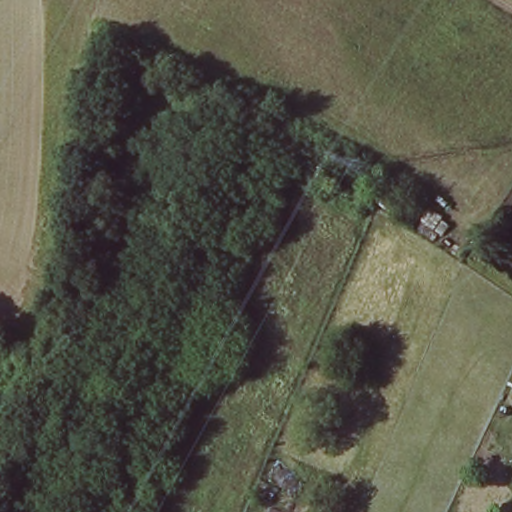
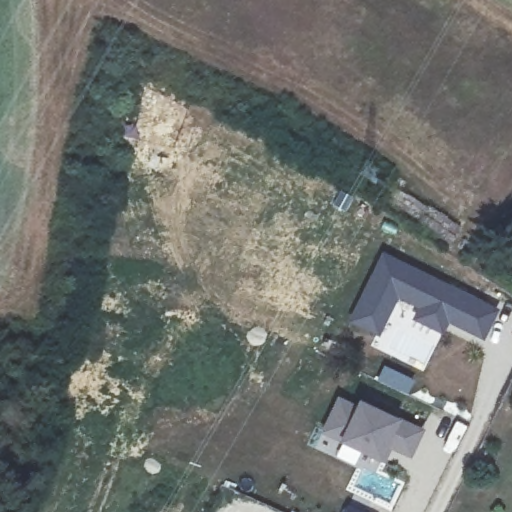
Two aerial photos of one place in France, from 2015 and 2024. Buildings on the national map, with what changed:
new [(450,322),(443,333),(412,319),(419,306),(399,295),(380,334),(349,319),(383,249),(500,308),(485,338),(450,322)]
new [(358,402),(360,397),(401,416),(425,426),(412,456),(391,443),(383,460),(339,439),(340,437),(322,430),(338,393),(358,402)]
new [(346,505),(357,512),(343,512),(346,505)]

